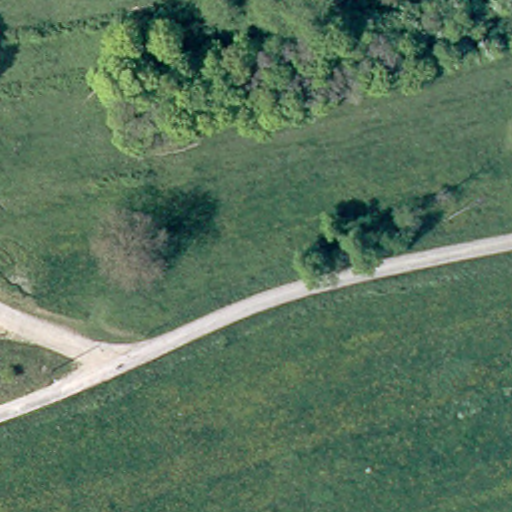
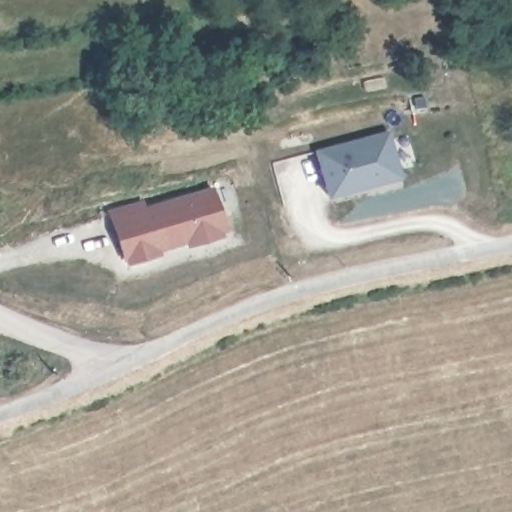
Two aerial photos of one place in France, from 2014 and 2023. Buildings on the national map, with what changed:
new [(390,130),(402,176),(329,195),(317,150),(390,130)]
new [(110,210),(145,200),(147,205),(215,185),(230,233),(125,264),(110,210)]

